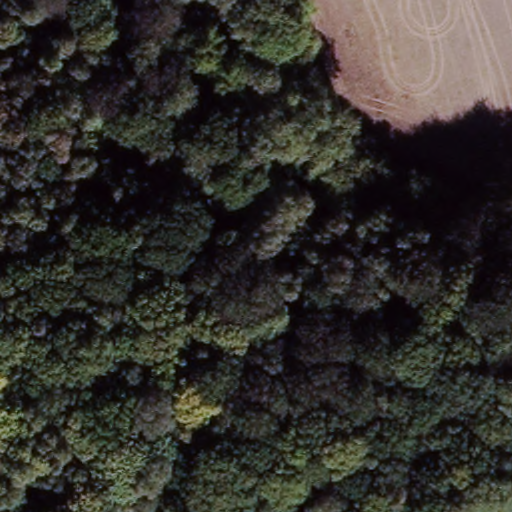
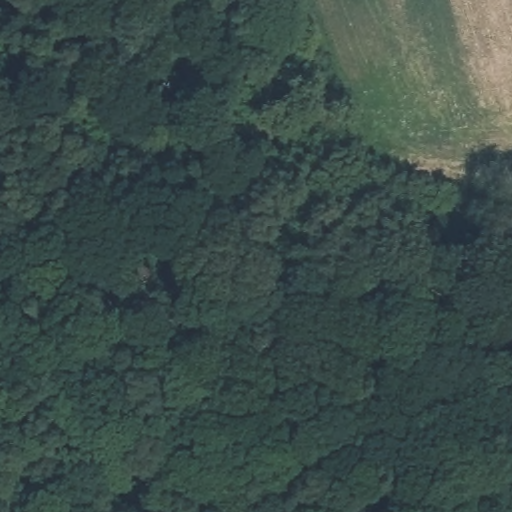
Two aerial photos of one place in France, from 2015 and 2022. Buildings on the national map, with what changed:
[]

